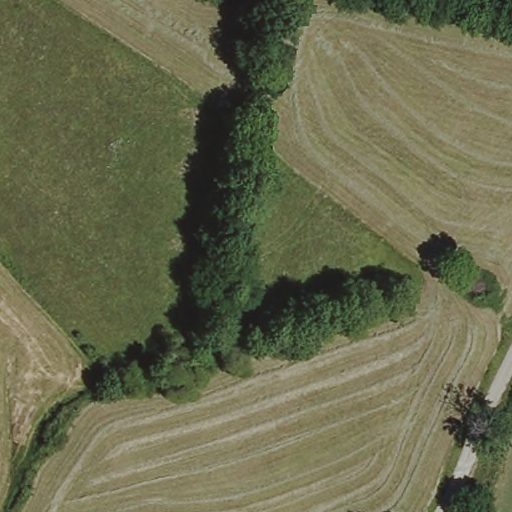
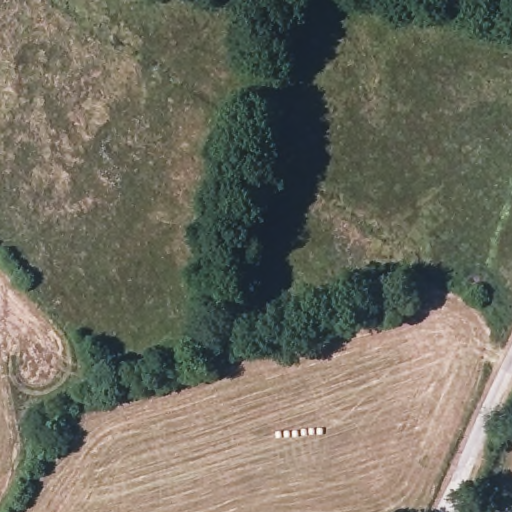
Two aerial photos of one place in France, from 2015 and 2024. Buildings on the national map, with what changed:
[]

